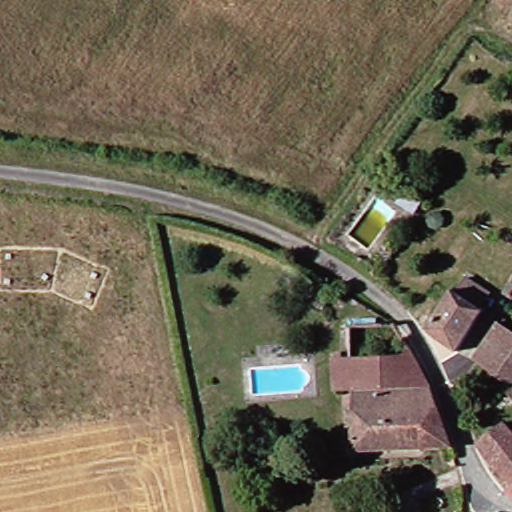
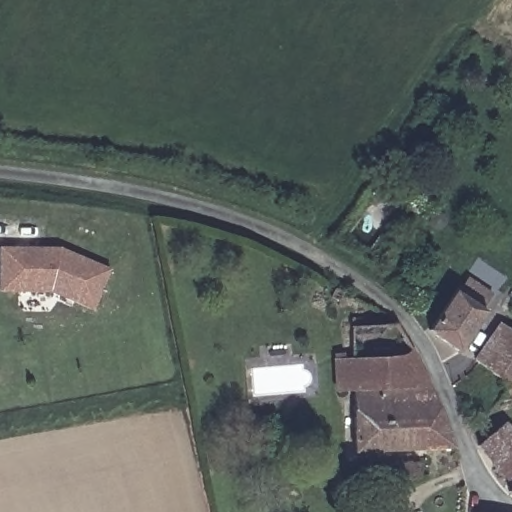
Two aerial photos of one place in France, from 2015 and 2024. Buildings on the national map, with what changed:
new [(62,247),(112,268),(95,309),(53,291),(1,290),(2,246),(62,247)]
unchanged [(451,292),(483,314),(453,351),(424,330),(451,292)]
unchanged [(467,361),(494,323),(512,336),(512,370),(499,384),(467,361)]
unchanged [(399,392),(338,391),(339,356),(405,354),(404,360),(422,389),(399,392)]
unchanged [(499,384),(512,370),(512,401),(510,403),(493,390),(499,384)]
unchanged [(427,394),(445,448),(425,451),(348,456),(345,395),(418,394),(427,394)]
unchanged [(496,426),(512,443),(512,504),(501,498),(503,486),(471,446),(496,426)]

